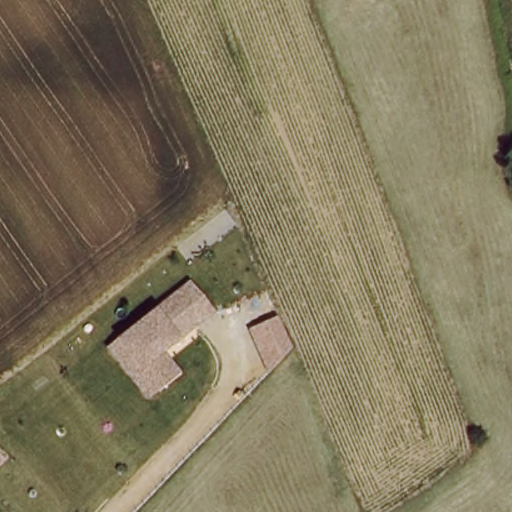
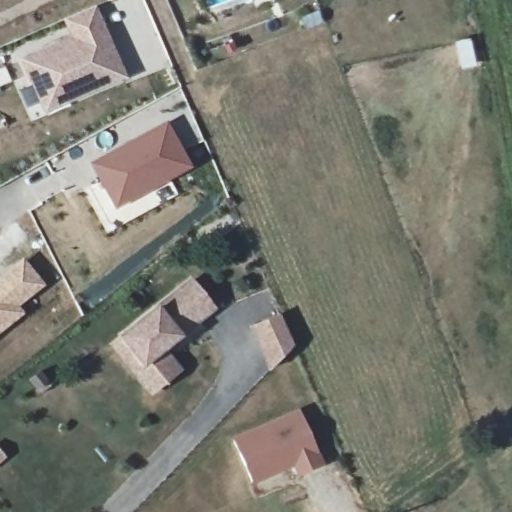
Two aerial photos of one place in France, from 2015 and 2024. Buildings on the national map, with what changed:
new [(71,39),(62,19),(96,5),(129,77),(43,116),(21,60),(71,39)]
new [(166,122),(192,169),(116,212),(88,164),(166,122)]
new [(22,266),(40,288),(13,309),(19,317),(0,331),(0,282),(22,266)]
unchanged [(134,373),(110,343),(157,305),(189,279),(212,312),(179,335),(163,347),(176,370),(148,396),(134,373)]
unchanged [(278,301),(291,331),(268,354),(250,312),(278,301)]
new [(298,410),(324,466),(297,479),(292,467),(254,487),(232,438),(298,410)]

